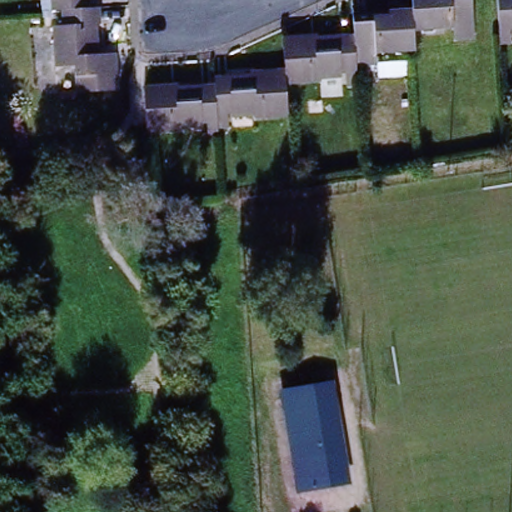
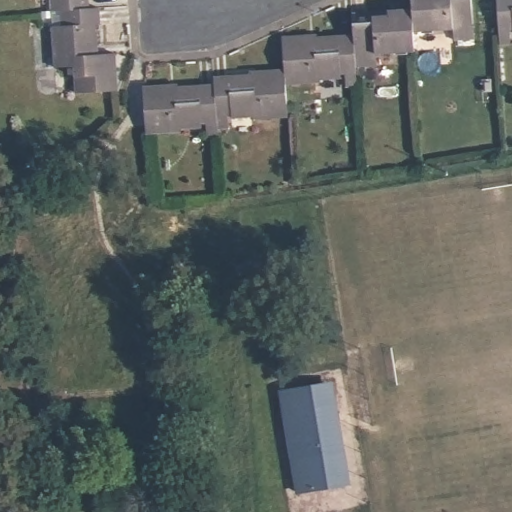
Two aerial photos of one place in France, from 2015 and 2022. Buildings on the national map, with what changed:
unchanged [(59,13),(59,0),(93,0),(93,11),(67,13),(59,13)]
unchanged [(358,31),(358,10),(391,7),(390,0),(413,0),(414,23),(414,42),(385,45),(384,35),(359,37),(358,31)]
unchanged [(470,12),(452,13),(451,21),(414,23),(413,0),(469,0),(470,12)]
unchanged [(499,0),(512,0),(512,31),(502,31),(499,0)]
unchanged [(93,11),(99,10),(100,32),(93,34),(94,51),(84,52),(84,65),(110,64),(113,100),(82,102),(80,83),(59,83),(55,38),(68,38),(67,13),(93,11)]
unchanged [(289,36),(311,36),(311,44),(329,44),(329,32),(358,31),(359,37),(360,68),(345,69),(345,75),(326,75),(326,82),(292,84),(291,70),(289,36)]
unchanged [(214,79),(248,77),(249,81),(265,81),(265,70),(291,70),(292,84),(293,122),(265,124),(264,117),(218,117),(215,86),(214,79)]
unchanged [(139,90),(165,90),(165,97),(182,97),(183,86),(215,86),(218,117),(218,121),(196,122),(196,130),(178,131),(178,140),(143,141),(139,90)]
unchanged [(285,393),(330,386),(347,490),(303,498),(285,393)]

